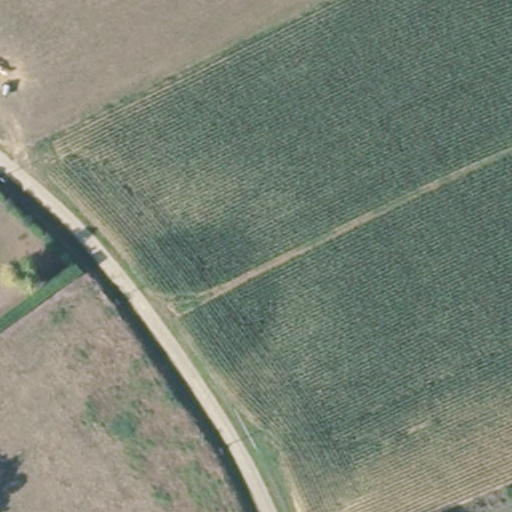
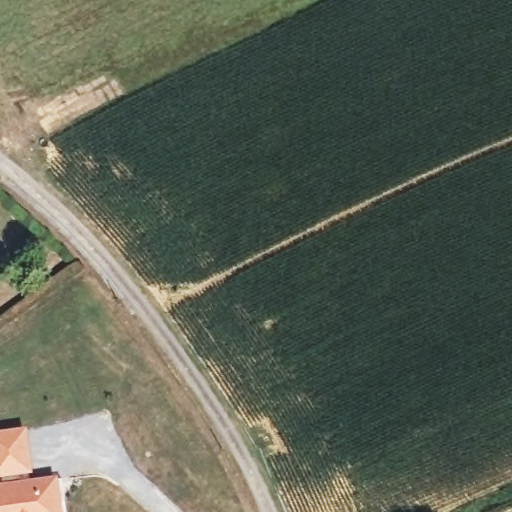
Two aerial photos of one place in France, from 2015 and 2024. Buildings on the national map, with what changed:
new [(0,479),(0,432),(24,428),(32,475),(0,479)]
new [(55,476),(60,512),(0,512),(0,485),(55,476)]

